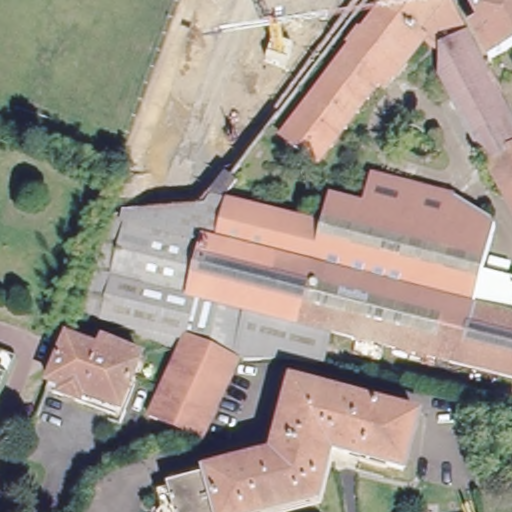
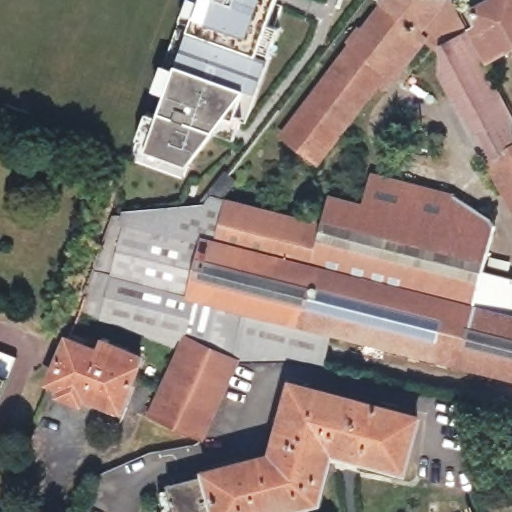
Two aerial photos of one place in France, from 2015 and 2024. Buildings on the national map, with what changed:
new [(201,0),(276,0),(257,51),(270,59),(258,93),(244,90),(189,166),(148,150),(177,66),(191,30),(201,0)]
demolished [(299,18),(276,10),(222,154),(170,135),(219,0),(305,0),(299,18)]
unchanged [(457,10),(443,27),(432,19),(319,165),(283,137),(387,0),(451,0),(457,10)]
unchanged [(477,10),(497,0),(512,0),(512,49),(494,58),(479,29),(485,26),(477,10)]
unchanged [(442,72),(443,48),(470,34),(512,113),(512,204),(442,72)]
unchanged [(223,167),(229,171),(234,176),(217,198),(212,194),(206,189),(223,167)]
unchanged [(321,218),(329,191),(362,200),(370,167),(455,189),(490,212),(494,219),(483,266),(512,274),(512,371),(292,316),(321,218)]
unchanged [(149,192),(147,209),(164,214),(161,227),(205,238),(192,290),(203,293),(179,347),(83,309),(126,183),(149,192)]
unchanged [(203,293),(192,290),(205,238),(161,227),(164,214),(166,214),(223,208),(226,193),(321,218),(292,316),(261,308),(202,434),(151,411),(179,347),(203,293)]
new [(251,329),(261,308),(292,316),(336,327),(326,365),(281,356),(237,359),(251,329)]
unchanged [(91,346),(85,362),(99,367),(106,348),(146,363),(126,417),(89,403),(86,410),(70,404),(73,396),(58,390),(76,340),(91,346)]
unchanged [(0,406),(0,362),(14,367),(0,406)]
unchanged [(278,512),(167,512),(162,491),(173,488),(172,483),(278,456),(299,383),(422,419),(408,470),(336,450),(321,501),(278,512)]

